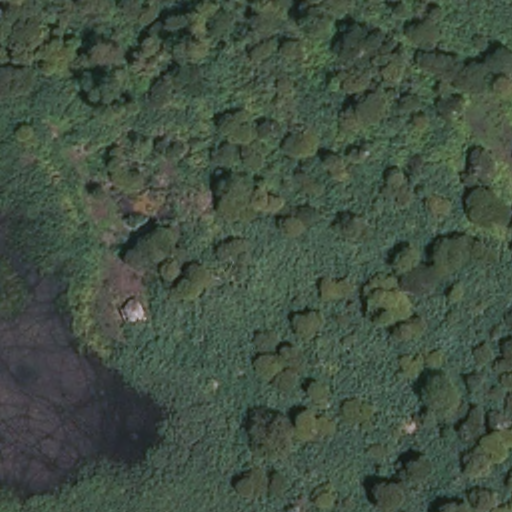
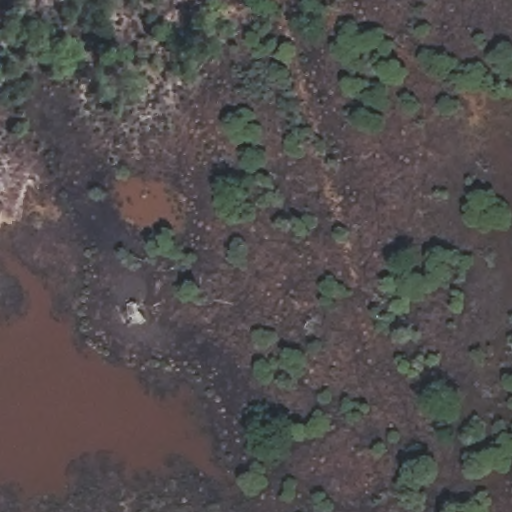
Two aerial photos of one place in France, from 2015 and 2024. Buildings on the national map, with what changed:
unchanged [(122,323),(117,306),(132,300),(140,319),(122,323)]

